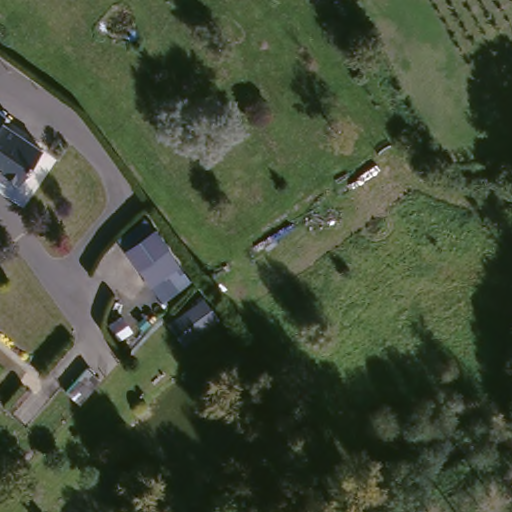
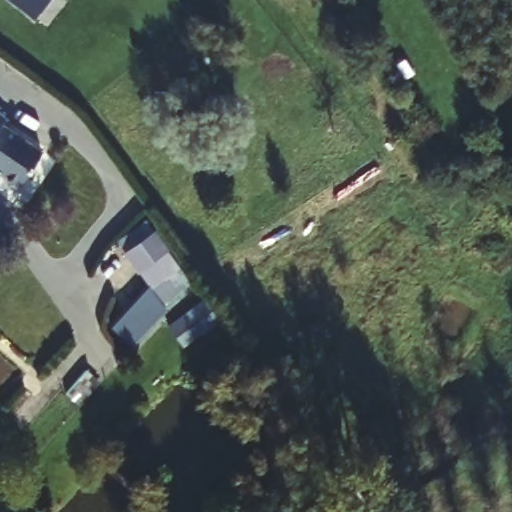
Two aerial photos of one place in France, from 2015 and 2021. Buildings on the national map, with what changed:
new [(10,0),(48,0),(34,18),(10,0)]
unchanged [(27,182),(1,164),(0,166),(0,103),(10,110),(4,119),(49,151),(27,182)]
unchanged [(157,280),(146,264),(133,246),(161,225),(174,243),(186,259),(157,280)]

